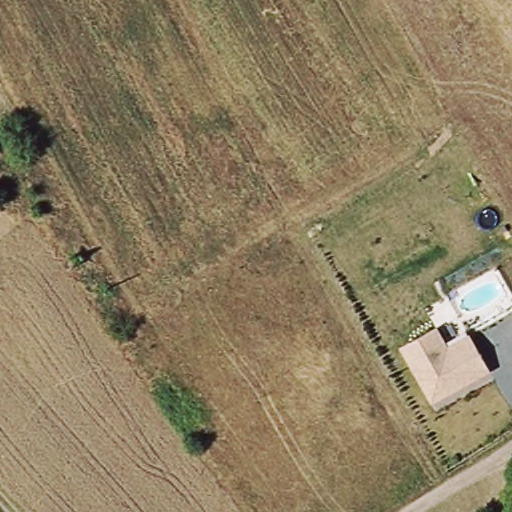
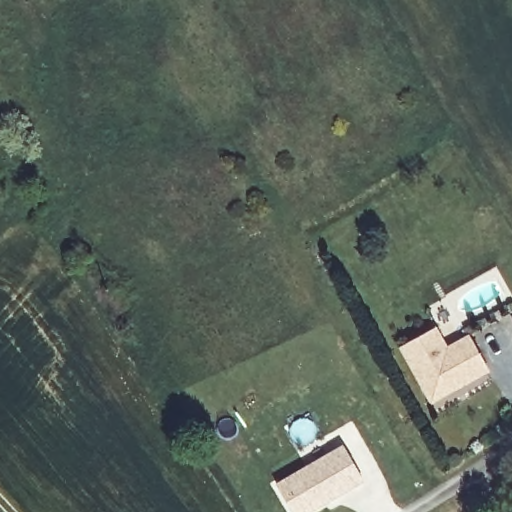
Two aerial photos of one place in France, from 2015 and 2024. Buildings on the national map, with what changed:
unchanged [(436,327),(446,346),(470,335),(490,372),(430,404),(398,347),(436,327)]
new [(361,482),(307,512),(289,512),(275,486),(341,448),(361,482)]

